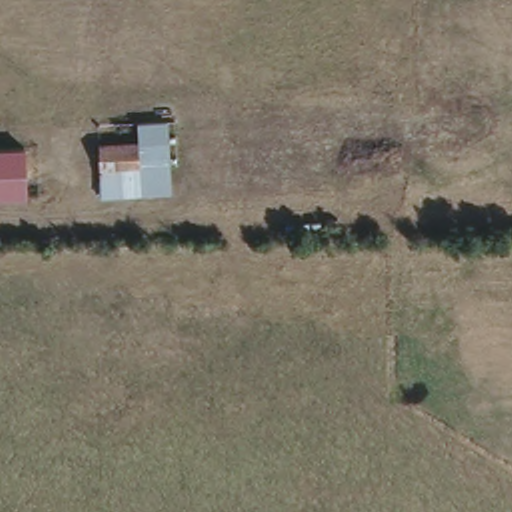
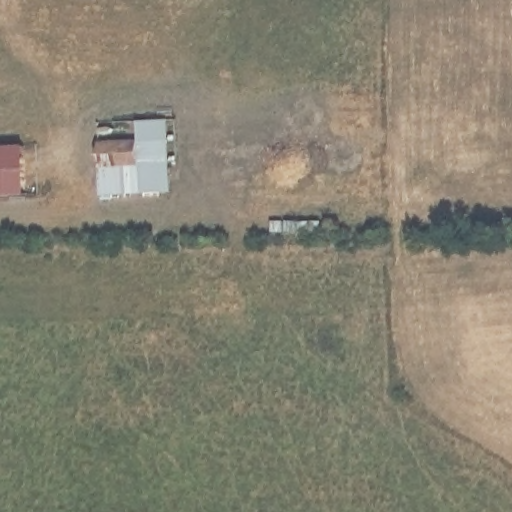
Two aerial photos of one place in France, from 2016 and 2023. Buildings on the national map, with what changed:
unchanged [(137,121),(169,121),(174,197),(146,196),(143,159),(142,137),(137,138),(137,121)]
unchanged [(108,200),(104,162),(103,140),(142,137),(143,159),(146,196),(108,200)]
unchanged [(28,203),(0,204),(0,148),(23,147),(28,203)]

